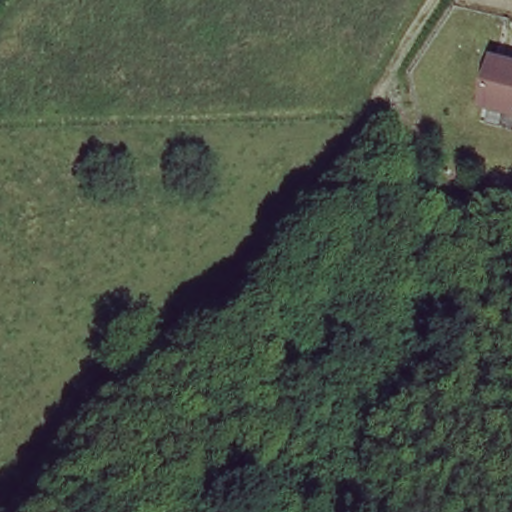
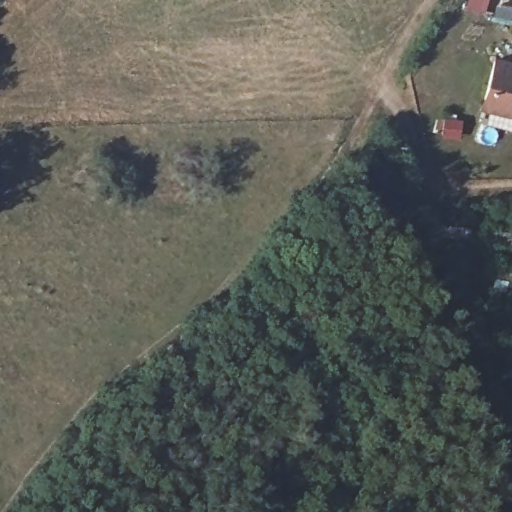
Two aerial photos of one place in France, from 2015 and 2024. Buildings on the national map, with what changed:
unchanged [(500,63),(512,67),(512,112),(490,106),(500,63)]

